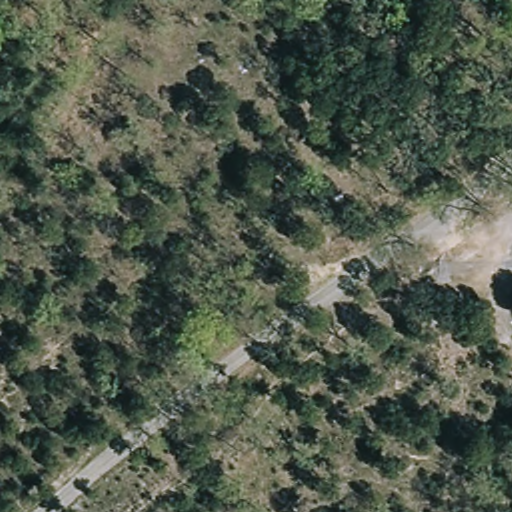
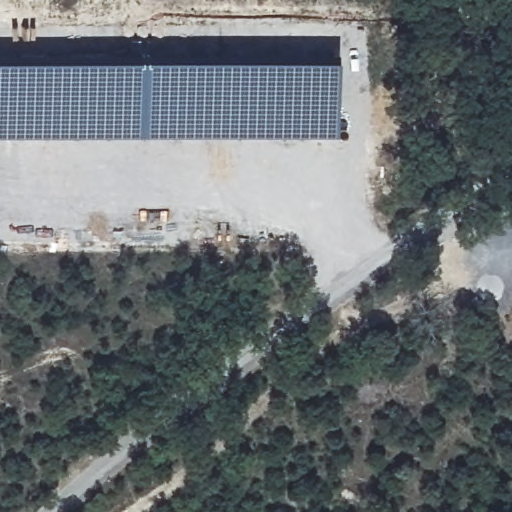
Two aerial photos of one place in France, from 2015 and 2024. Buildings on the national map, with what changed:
new [(0,54),(338,54),(338,135),(0,135),(0,54)]

